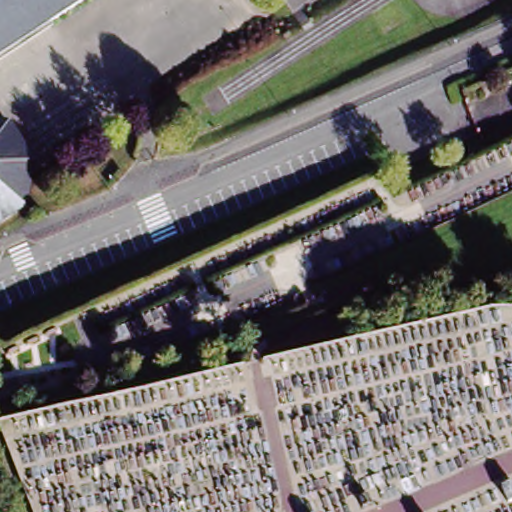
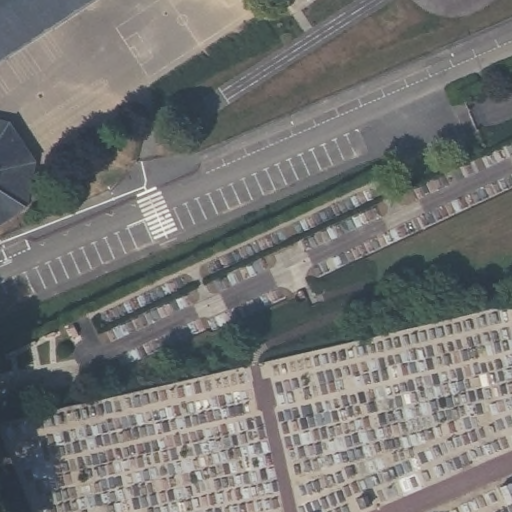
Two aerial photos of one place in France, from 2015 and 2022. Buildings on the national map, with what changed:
unchanged [(95,0),(0,62),(0,0),(95,0)]
unchanged [(26,206),(26,207),(0,223),(0,121),(7,122),(9,122),(35,162),(26,206)]

